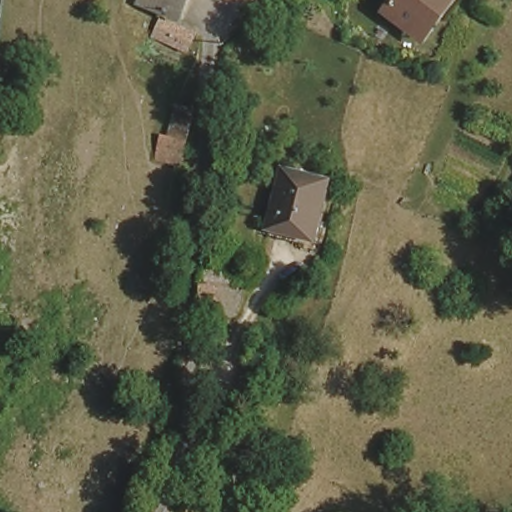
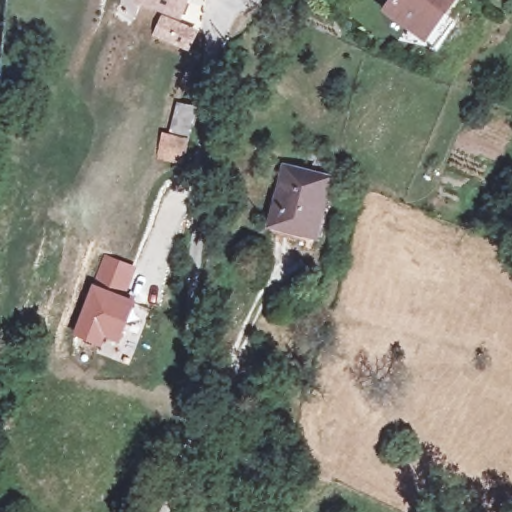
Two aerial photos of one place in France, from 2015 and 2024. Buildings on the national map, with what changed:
unchanged [(134,3),(135,0),(185,0),(176,20),(134,3)]
unchanged [(392,14),(396,7),(401,0),(458,0),(439,29),(431,41),(414,30),(392,14)]
unchanged [(190,35),(183,54),(153,40),(161,22),(190,35)]
unchanged [(159,152),(166,132),(171,134),(181,100),(201,107),(191,141),(184,160),(159,152)]
unchanged [(334,177),(320,236),(274,225),(288,166),(334,177)]
new [(136,267),(124,297),(136,302),(121,343),(104,336),(100,347),(73,336),(93,284),(104,254),(136,267)]
unchanged [(241,310),(208,304),(215,257),(240,265),(247,267),(241,310)]

